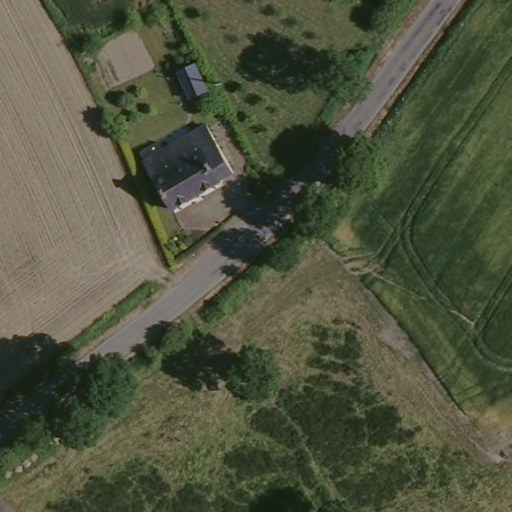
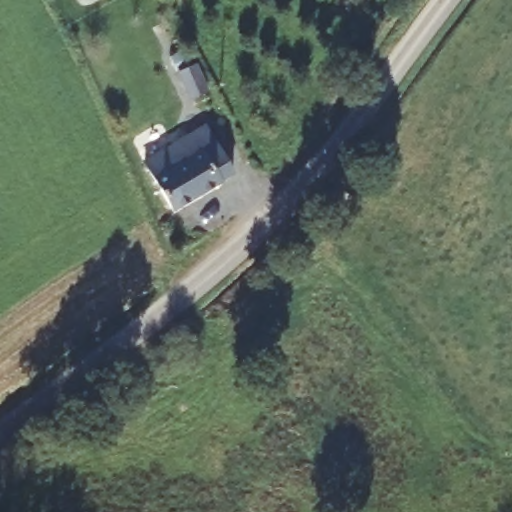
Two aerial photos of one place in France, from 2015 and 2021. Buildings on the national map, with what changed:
unchanged [(209,90),(192,100),(178,73),(194,64),(209,90)]
unchanged [(212,120),(240,169),(178,205),(150,157),(212,120)]

